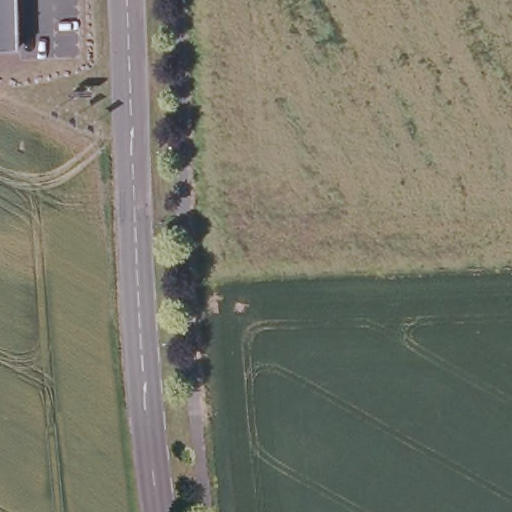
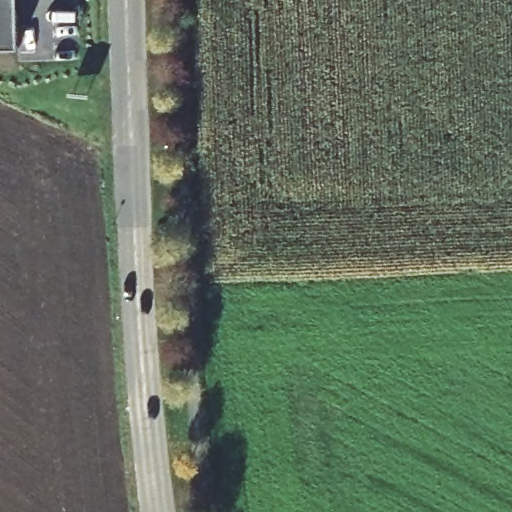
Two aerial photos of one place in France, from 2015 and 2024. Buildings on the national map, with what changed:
unchanged [(19,6),(20,47),(0,47),(0,0),(19,0),(19,6)]

